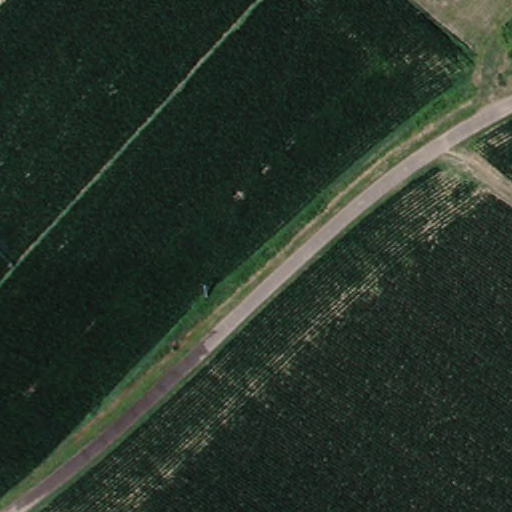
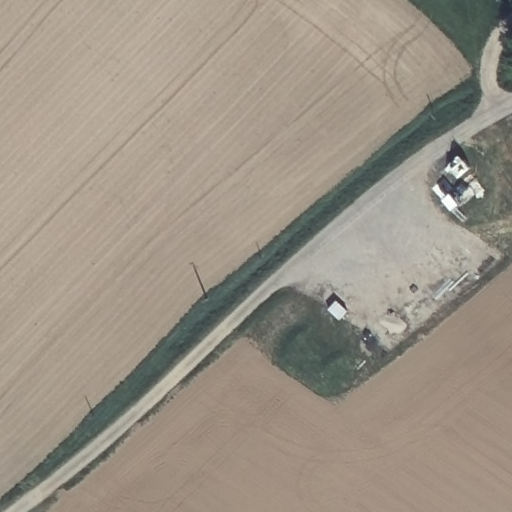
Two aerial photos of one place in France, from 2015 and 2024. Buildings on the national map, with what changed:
[]

